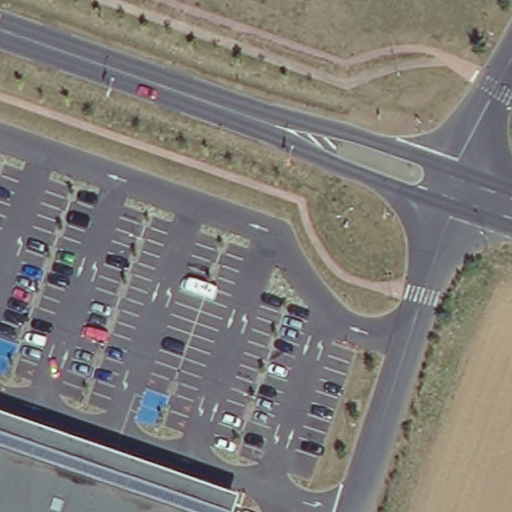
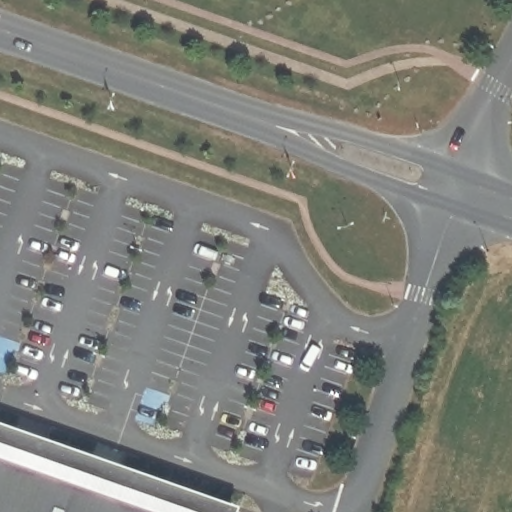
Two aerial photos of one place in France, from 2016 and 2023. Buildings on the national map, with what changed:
unchanged [(240,505),(238,512),(0,512),(0,420),(240,505)]

